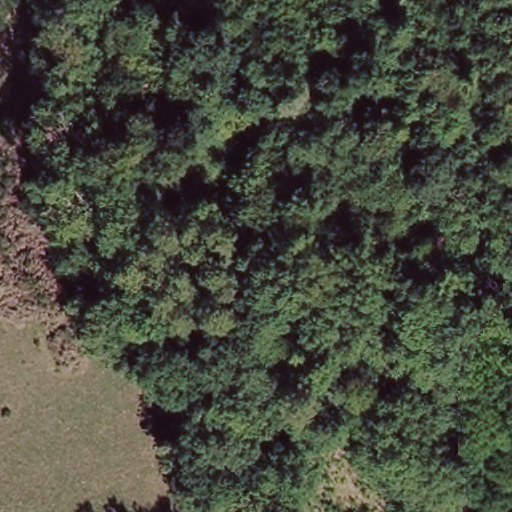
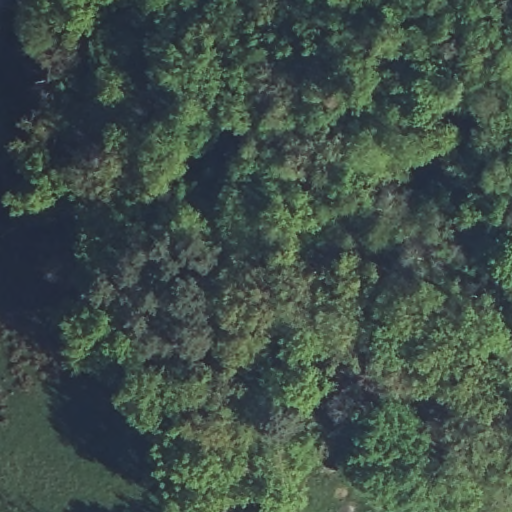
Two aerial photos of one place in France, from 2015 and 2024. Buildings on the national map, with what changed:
unchanged [(375,97),(381,90),(397,106),(391,112),(375,97)]

